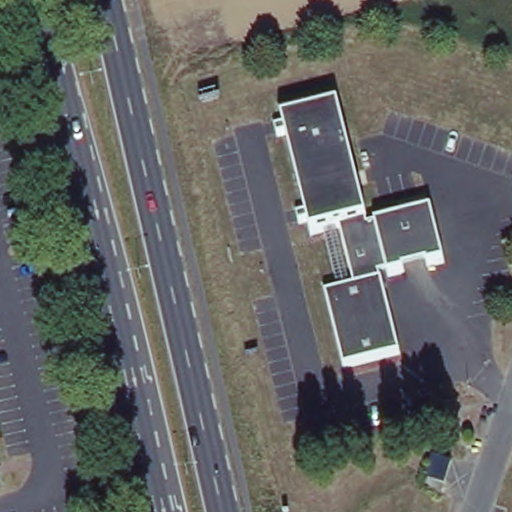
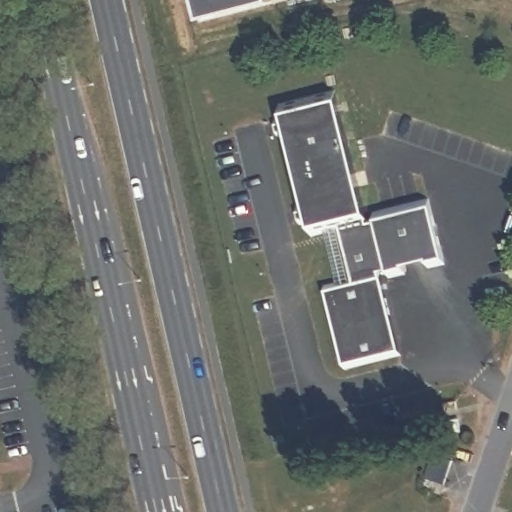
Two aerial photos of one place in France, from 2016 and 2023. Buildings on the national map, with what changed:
new [(193,21),(188,0),(274,0),(274,2),(193,21)]
unchanged [(282,120),(292,105),(348,97),(378,211),(440,196),(452,256),(422,260),(420,252),(397,258),(399,266),(383,270),(382,265),(377,266),(397,352),(341,365),(320,281),(341,275),(329,226),(309,230),(306,217),(298,219),(294,200),(301,198),(295,174),(288,176),(284,159),(290,157),(288,145),(282,120)]

